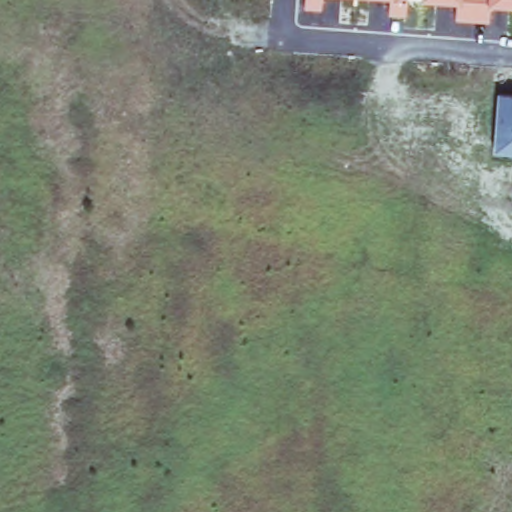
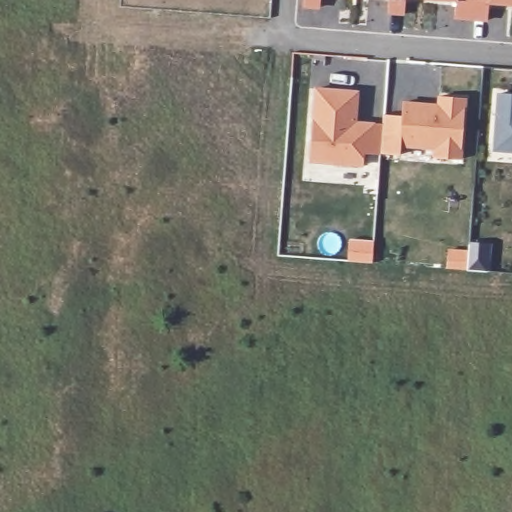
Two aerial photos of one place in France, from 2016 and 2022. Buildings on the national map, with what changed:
unchanged [(304,0),(320,0),(319,8),(303,6),(304,0)]
unchanged [(404,14),(388,13),(389,0),(405,0),(404,14)]
unchanged [(512,5),(488,3),(487,21),(454,18),(456,0),(512,0),(512,5)]
new [(316,89),(357,92),(354,123),(383,126),(381,154),(364,152),(363,165),(310,161),(316,89)]
unchanged [(512,97),(512,156),(492,155),(495,96),(512,97)]
new [(383,126),(383,119),(384,115),(402,116),(403,104),(425,105),(432,106),(439,106),(439,97),(465,99),(460,160),(435,158),(435,149),(401,146),(400,156),(381,154),(383,126)]
new [(469,244),(488,246),(487,255),(486,271),(467,270),(468,254),(469,244)]

